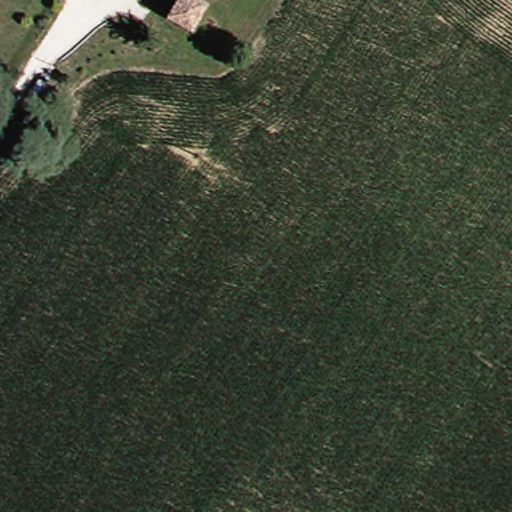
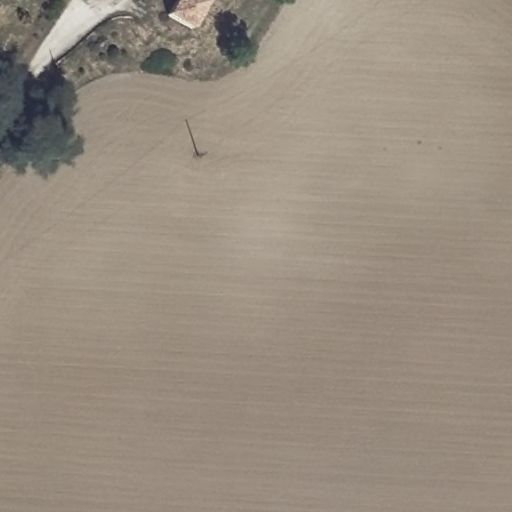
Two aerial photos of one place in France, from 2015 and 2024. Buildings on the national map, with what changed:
unchanged [(190,27),(169,15),(178,0),(199,0),(205,4),(190,27)]

